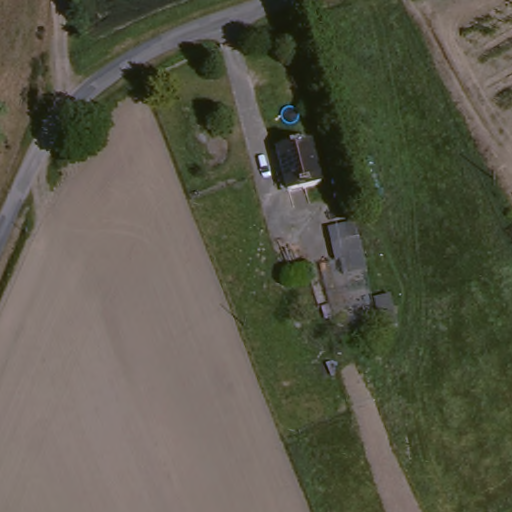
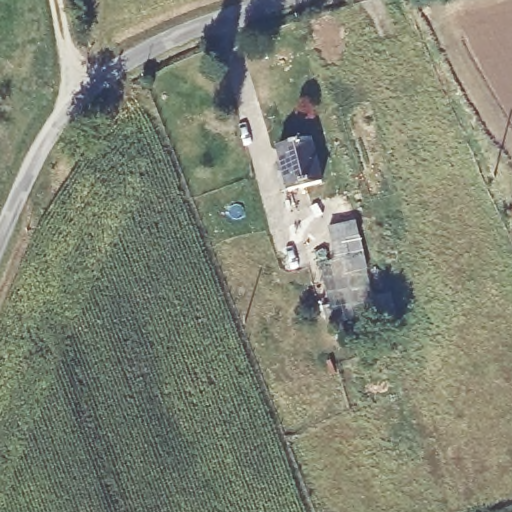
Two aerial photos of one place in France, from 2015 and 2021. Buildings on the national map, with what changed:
unchanged [(321,187),(287,195),(277,152),(312,144),(321,187)]
unchanged [(354,274),(345,277),(341,263),(338,264),(328,229),(354,222),(358,237),(367,270),(354,274)]
unchanged [(384,381),(376,350),(389,347),(398,377),(384,381)]

